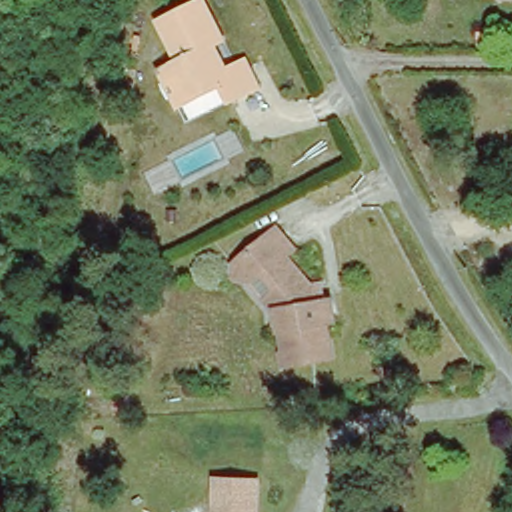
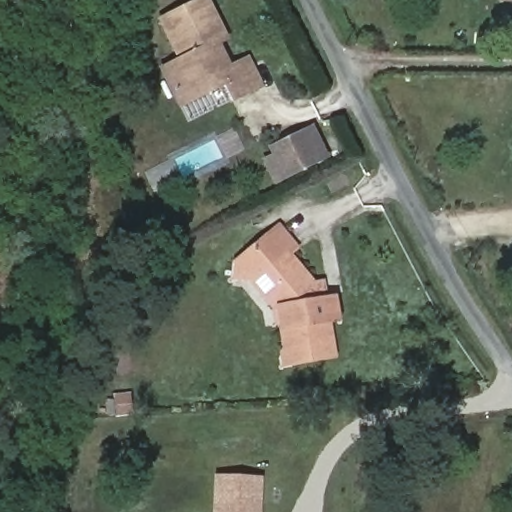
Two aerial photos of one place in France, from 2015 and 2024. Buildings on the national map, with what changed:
unchanged [(196,0),(204,0),(221,40),(205,47),(216,71),(240,62),(254,95),(230,106),(222,88),(178,109),(160,71),(179,62),(159,16),(196,0)]
new [(273,186),(260,160),(270,155),(266,148),(312,125),(328,158),(273,186)]
unchanged [(302,249),(296,256),(314,282),(325,282),(330,296),(335,297),(340,324),(332,324),(337,359),(288,369),(282,331),(277,332),(274,306),(255,285),(235,285),(235,261),(276,223),(302,249)]
unchanged [(258,478),(256,512),(214,512),(215,476),(258,478)]

